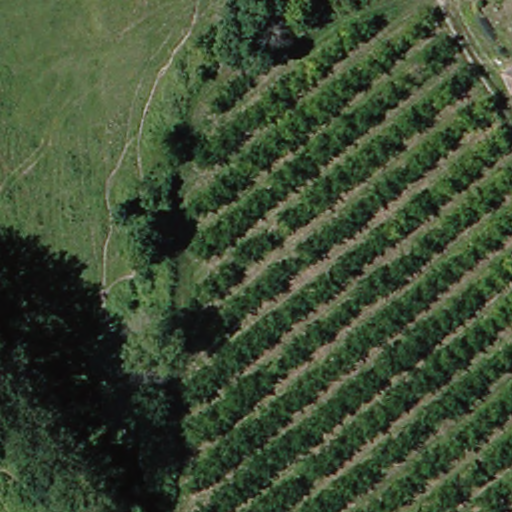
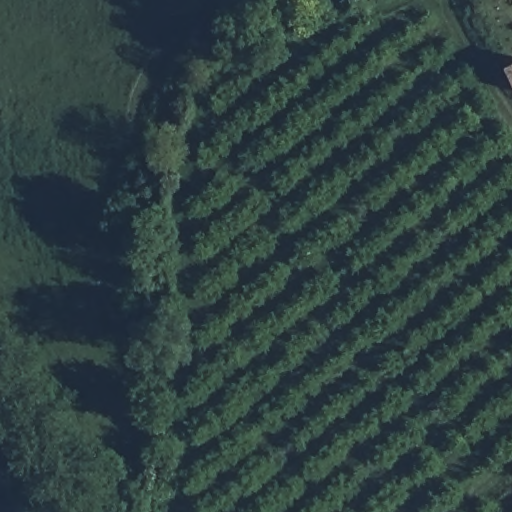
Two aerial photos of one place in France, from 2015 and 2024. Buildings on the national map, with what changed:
unchanged [(512,67),(512,88),(502,72),(512,67)]

